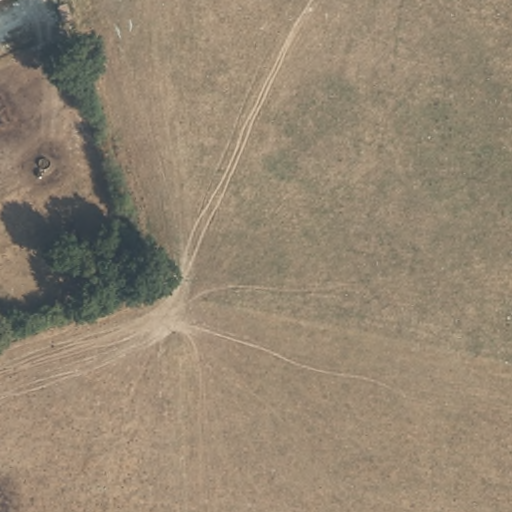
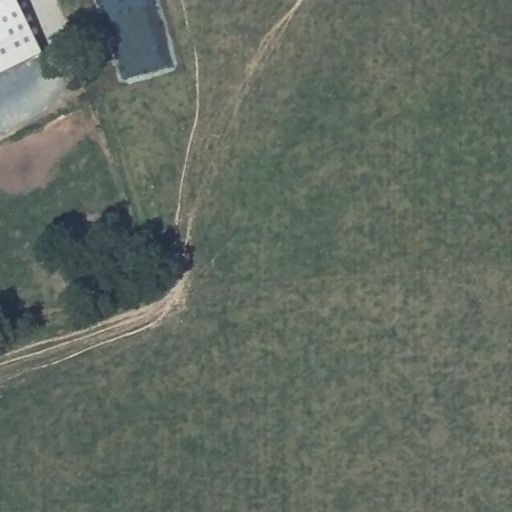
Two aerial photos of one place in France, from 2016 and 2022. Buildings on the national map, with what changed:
unchanged [(0,0),(6,0),(0,3),(0,0)]
new [(15,0),(42,54),(0,74),(0,3),(6,0),(15,0)]

